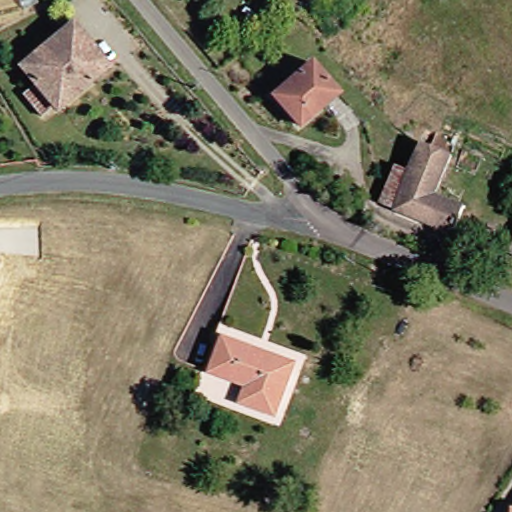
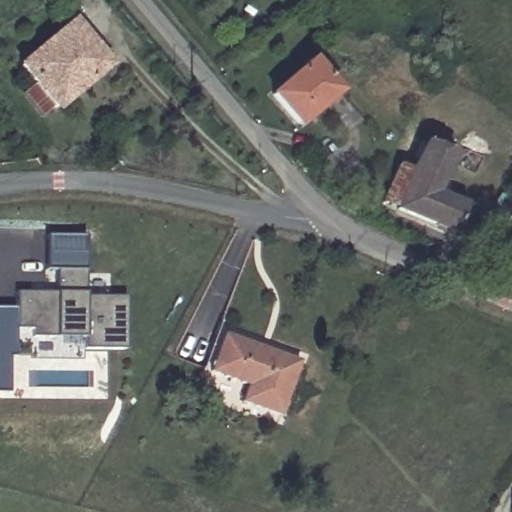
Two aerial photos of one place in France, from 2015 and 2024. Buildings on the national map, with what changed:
unchanged [(18,93),(30,83),(15,65),(60,27),(66,22),(82,41),(103,66),(51,109),(48,106),(37,115),(18,93)]
unchanged [(295,122),(272,95),(310,62),(336,93),(309,117),(299,126),(295,122)]
unchanged [(398,165),(411,170),(423,145),(432,148),(436,139),(450,145),(446,154),(451,157),(436,194),(465,206),(453,233),(397,210),(382,203),(398,165)]
new [(124,349),(83,348),(84,337),(55,337),(33,336),(33,329),(16,329),(16,292),(55,293),(56,269),(45,269),(46,235),(85,236),(84,297),(125,297),(124,349)]
unchanged [(235,403),(241,386),(204,372),(218,335),(292,363),(272,417),(235,403)]

